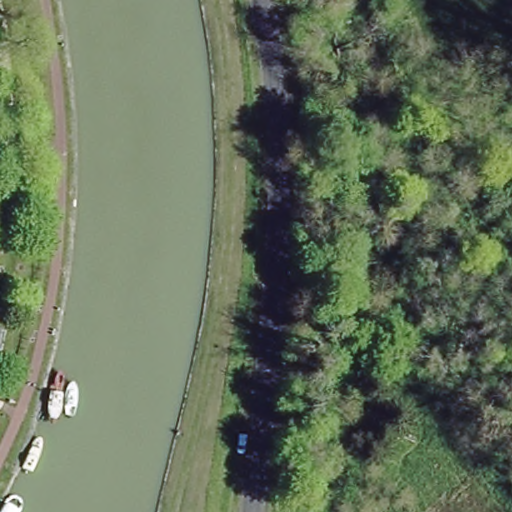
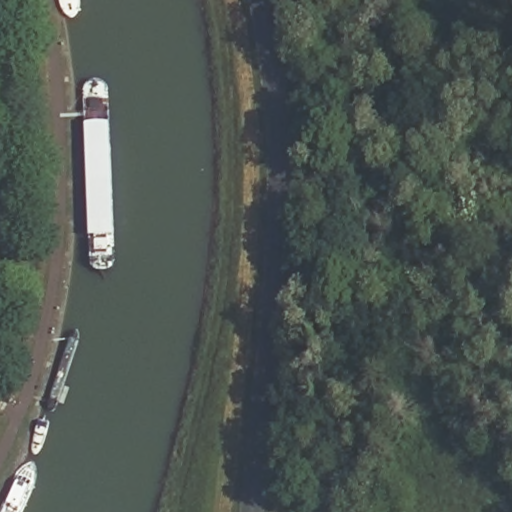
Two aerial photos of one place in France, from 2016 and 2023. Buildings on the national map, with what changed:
unchanged [(0,300),(0,292),(1,293),(0,300)]

